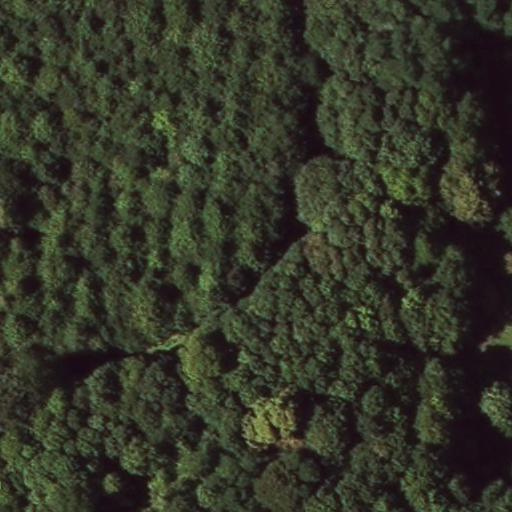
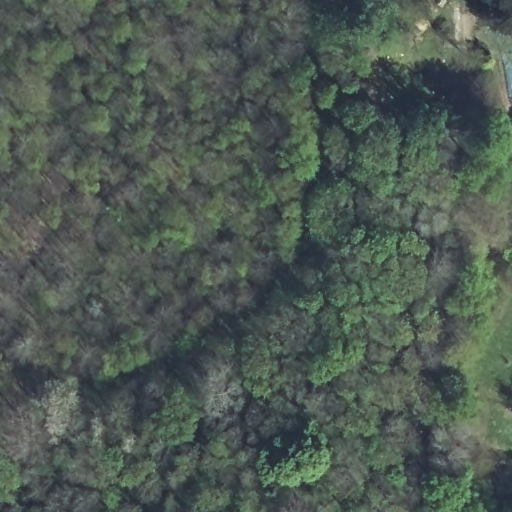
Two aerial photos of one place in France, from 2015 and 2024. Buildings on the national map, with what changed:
unchanged [(406,410),(380,426),(358,392),(383,376),(406,410)]

